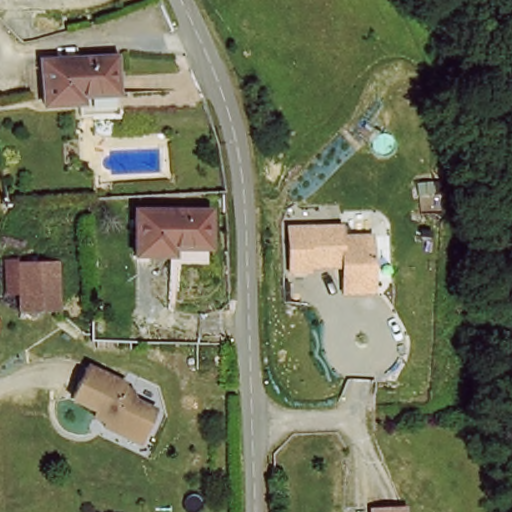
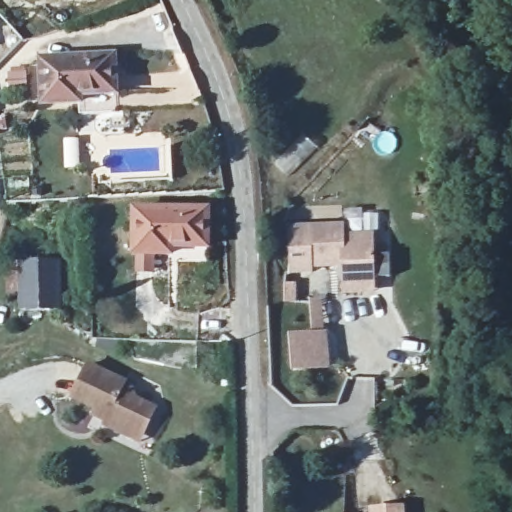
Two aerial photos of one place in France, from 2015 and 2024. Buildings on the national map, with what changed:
unchanged [(59,98),(43,94),(43,51),(115,47),(118,86),(80,85),(81,97),(59,98)]
unchanged [(213,207),(211,241),(173,239),(173,248),(138,247),(141,204),(213,207)]
unchanged [(343,226),(343,237),(373,236),(373,280),(359,293),(342,293),(342,278),(350,270),(346,266),(309,267),(309,272),(290,272),(289,227),(343,226)]
unchanged [(65,252),(65,300),(39,300),(39,311),(25,311),(25,252),(65,252)]
new [(323,300),(326,333),(330,370),(293,372),(289,336),(313,333),(310,302),(323,300)]
unchanged [(119,430),(101,422),(103,417),(91,412),(93,405),(69,395),(84,362),(121,378),(120,382),(129,386),(134,394),(153,402),(141,430),(138,437),(119,430)]
unchanged [(403,511),(403,512),(376,512),(403,511)]

